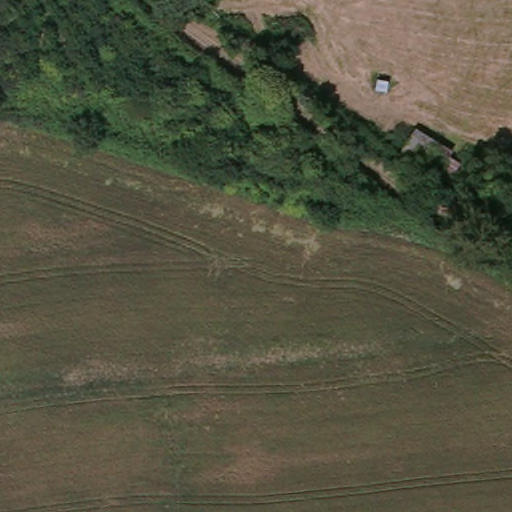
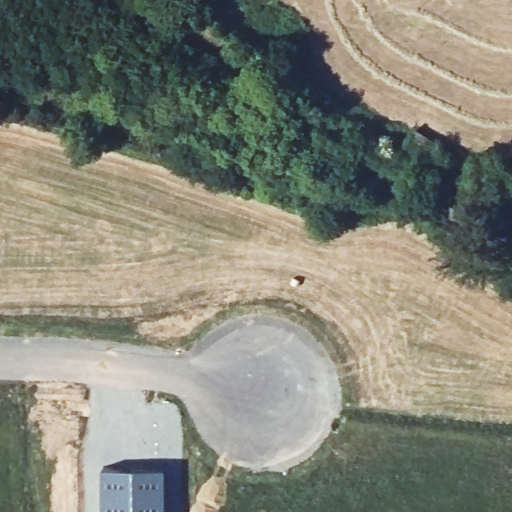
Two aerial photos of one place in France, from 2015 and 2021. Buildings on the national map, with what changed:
unchanged [(450,149),(448,156),(461,163),(454,176),(406,155),(416,131),(450,149)]
new [(103,470),(166,470),(166,512),(103,512),(103,470)]
new [(213,506),(273,507),(273,512),(213,512),(213,506)]

